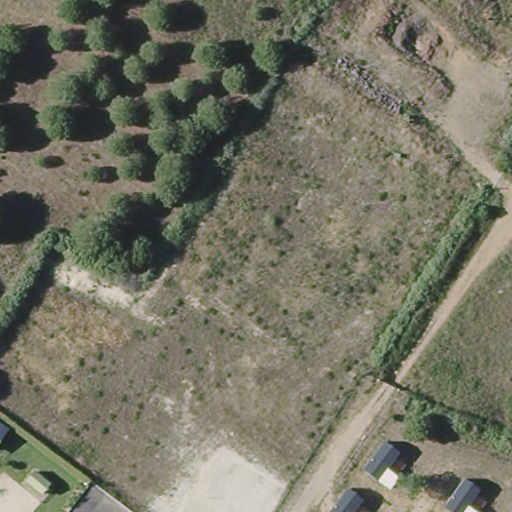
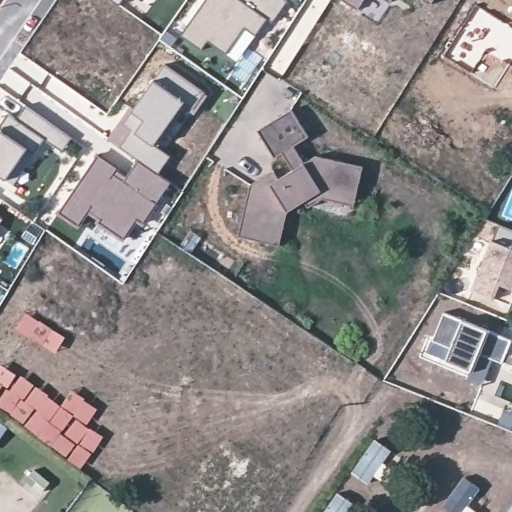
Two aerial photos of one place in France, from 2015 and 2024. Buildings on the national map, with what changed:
new [(111,0),(123,0),(119,6),(111,0)]
new [(254,35),(243,29),(224,53),(208,42),(201,50),(183,36),(209,0),(240,0),(241,0),(285,0),(288,2),(266,20),(254,35)]
new [(339,0),(363,0),(356,10),(339,0)]
new [(383,0),(391,0),(388,3),(383,0)]
new [(418,0),(433,0),(429,7),(418,0)]
new [(192,109),(183,103),(153,146),(169,157),(158,175),(139,161),(108,139),(129,111),(134,112),(155,82),(165,67),(203,94),(192,109)]
new [(43,139),(34,154),(26,150),(6,180),(0,176),(0,129),(9,116),(18,121),(26,109),(71,139),(63,151),(43,139)]
new [(322,199),(310,208),(306,200),(288,211),(279,246),(241,236),(251,185),(274,173),(279,180),(293,171),(282,153),(274,158),(258,131),(293,111),(309,138),(294,147),(305,164),(316,157),(362,167),(355,207),(322,199)]
new [(141,226),(134,222),(123,239),(88,216),(76,230),(57,216),(98,155),(128,177),(139,161),(158,175),(171,184),(141,226)]
new [(0,223),(0,217),(3,219),(0,223)]
new [(512,231),(512,301),(504,320),(466,304),(497,225),(512,231)]
new [(507,365),(504,364),(494,360),(483,388),(469,382),(473,372),(445,360),(449,349),(431,341),(443,313),(512,341),(512,344),(508,355),(511,356),(507,365)]
new [(511,356),(512,353),(512,357),(511,356)]

